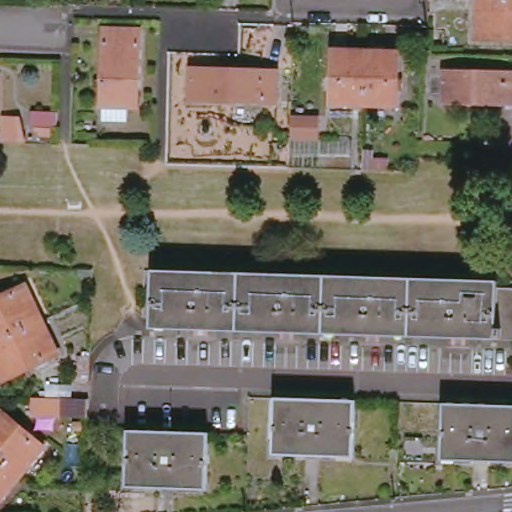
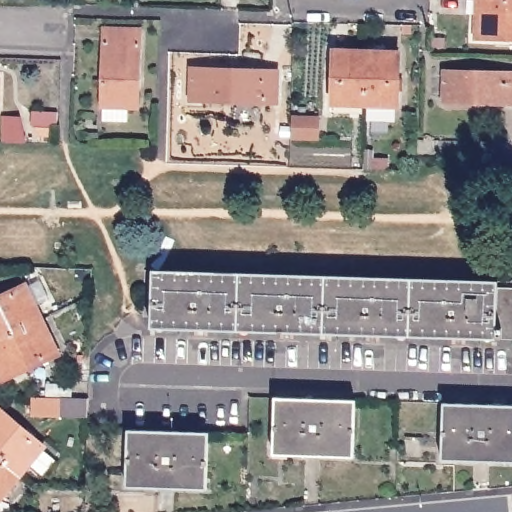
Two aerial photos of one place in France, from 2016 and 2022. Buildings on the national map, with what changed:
unchanged [(473,37),(474,0),(512,0),(512,38),(473,37)]
unchanged [(138,106),(137,119),(112,117),(113,106),(104,105),(106,29),(142,30),(140,106),(138,106)]
unchanged [(360,105),(329,104),(331,50),(361,52),(360,105)]
unchanged [(361,52),(396,52),(394,106),(360,105),(361,52)]
unchanged [(188,100),(189,67),(272,70),(271,102),(188,100)]
unchanged [(442,102),(442,72),(512,73),(512,103),(442,102)]
unchanged [(28,128),(29,114),(55,114),(54,129),(28,128)]
unchanged [(0,131),(0,116),(18,117),(23,143),(18,143),(0,142),(0,131)]
unchanged [(413,157),(414,141),(456,142),(456,157),(413,157)]
unchanged [(236,274),(234,330),(148,327),(150,272),(236,274)]
unchanged [(234,330),(236,274),(321,277),(321,332),(234,330)]
unchanged [(321,332),(321,277),(407,279),(405,335),(321,332)]
unchanged [(405,335),(407,279),(493,282),(492,288),(491,337),(405,335)]
unchanged [(0,296),(23,285),(39,320),(0,338),(0,296)]
unchanged [(491,337),(492,288),(512,289),(512,338),(491,337)]
unchanged [(56,353),(0,381),(0,338),(39,320),(56,353)]
unchanged [(71,382),(71,395),(45,395),(45,382),(71,382)]
unchanged [(55,397),(54,415),(28,415),(28,397),(55,397)]
unchanged [(351,402),(349,455),(272,452),(274,400),(351,402)]
unchanged [(442,405),(512,407),(512,461),(506,461),(441,457),(441,437),(442,405)]
unchanged [(0,412),(41,446),(17,477),(0,462),(0,412)]
unchanged [(204,433),(203,488),(124,486),(126,432),(204,433)]
unchanged [(0,496),(0,462),(17,477),(0,496)]

